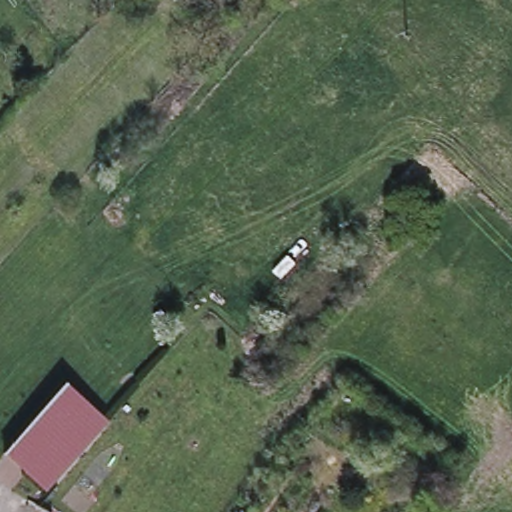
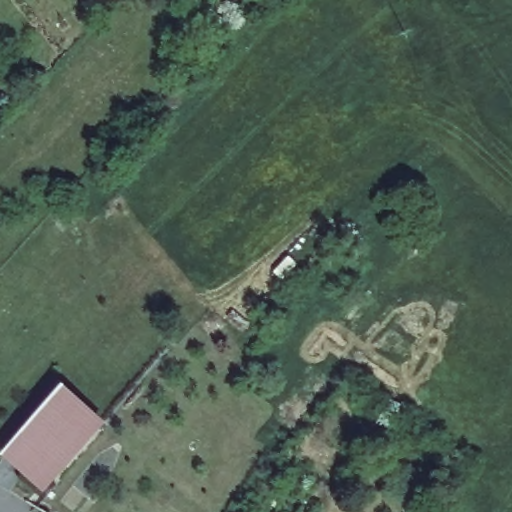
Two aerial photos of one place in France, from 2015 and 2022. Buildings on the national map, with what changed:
unchanged [(43,491),(2,454),(62,387),(103,425),(43,491)]
unchanged [(24,512),(29,502),(42,510),(45,512),(24,512)]

